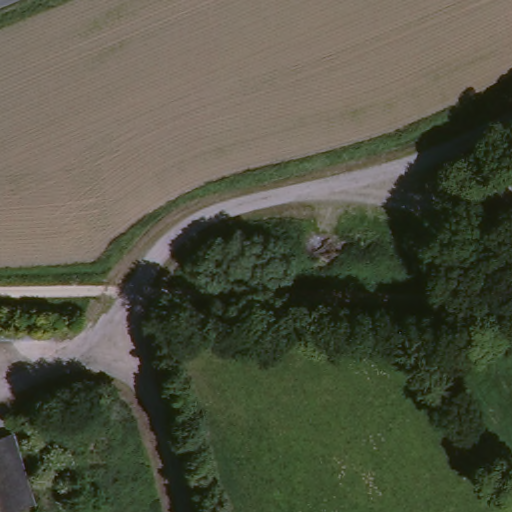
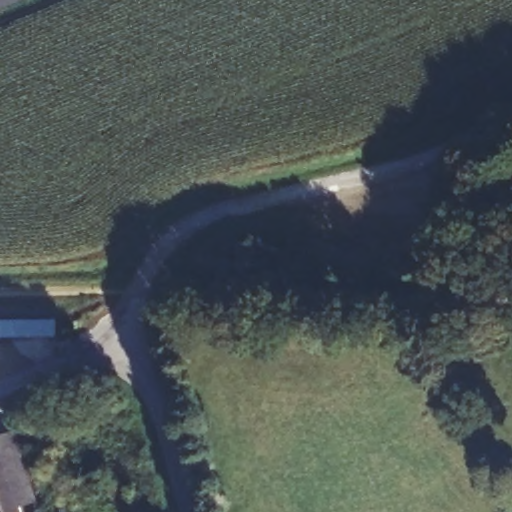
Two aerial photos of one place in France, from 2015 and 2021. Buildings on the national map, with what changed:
unchanged [(0,321),(68,320),(65,335),(0,336),(0,321)]
unchanged [(14,432),(42,505),(31,508),(0,437),(14,432)]
unchanged [(23,511),(23,512),(0,512),(0,437),(31,508),(23,511)]

